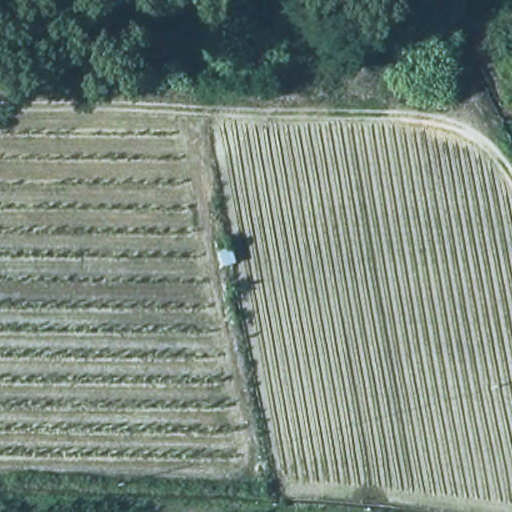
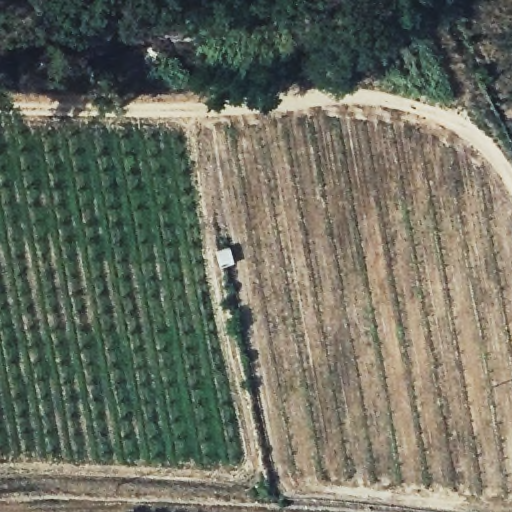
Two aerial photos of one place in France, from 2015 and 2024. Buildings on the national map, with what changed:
unchanged [(220,270),(217,253),(233,252),(236,267),(220,270)]

